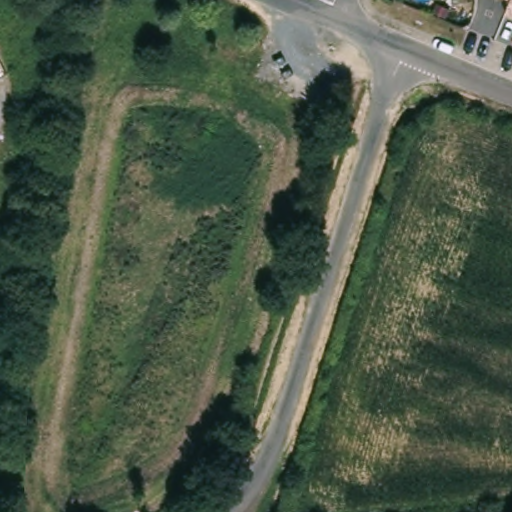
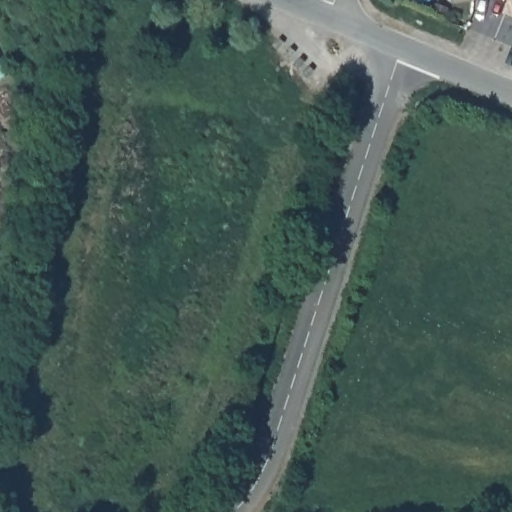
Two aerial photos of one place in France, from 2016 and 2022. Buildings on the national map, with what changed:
unchanged [(505,12),(510,0),(512,0),(512,15),(505,12)]

